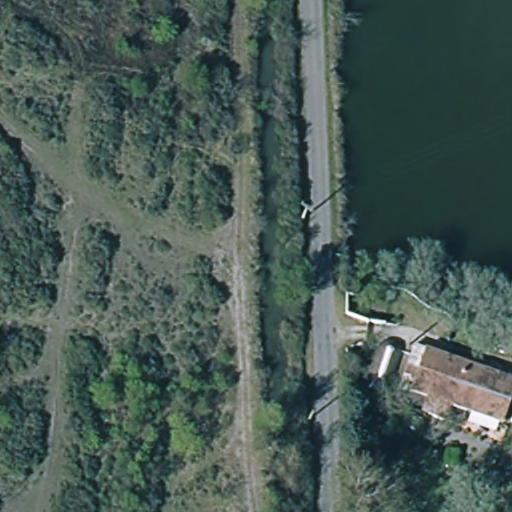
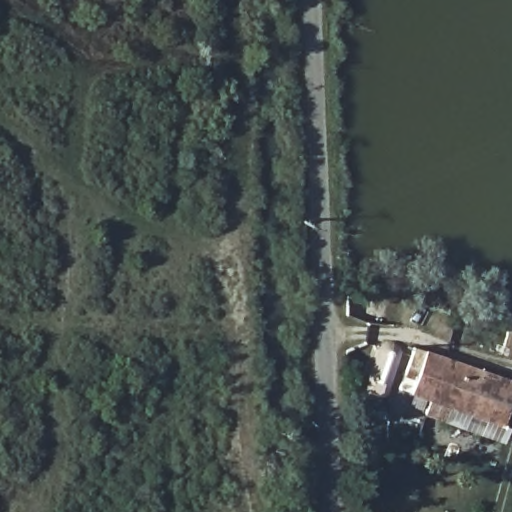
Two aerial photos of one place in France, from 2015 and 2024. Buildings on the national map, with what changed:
unchanged [(512,331),(512,355),(498,350),(505,328),(512,331)]
unchanged [(396,341),(401,348),(389,384),(371,377),(381,346),(388,341),(396,341)]
unchanged [(512,380),(512,399),(504,424),(412,392),(418,370),(409,368),(414,346),(512,380)]

